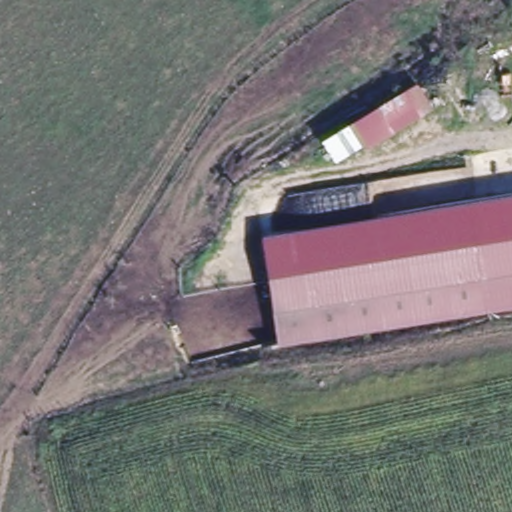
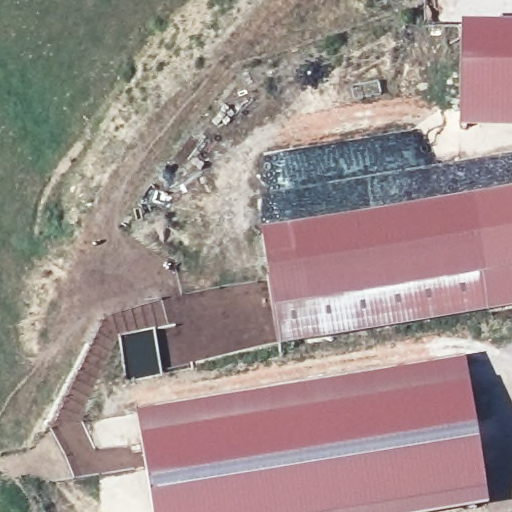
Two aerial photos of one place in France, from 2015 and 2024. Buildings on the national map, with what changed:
new [(462,24),(512,26),(512,130),(459,129),(462,24)]
unchanged [(434,106),(366,145),(363,143),(335,159),(321,136),(416,78),(434,106)]
unchanged [(512,305),(488,308),(470,196),(512,190),(512,305)]
unchanged [(470,196),(488,308),(278,335),(263,225),(470,196)]
new [(464,360),(488,504),(442,512),(153,512),(137,413),(464,360)]

